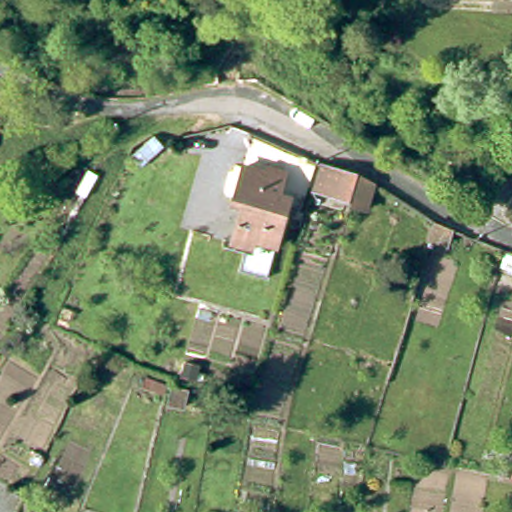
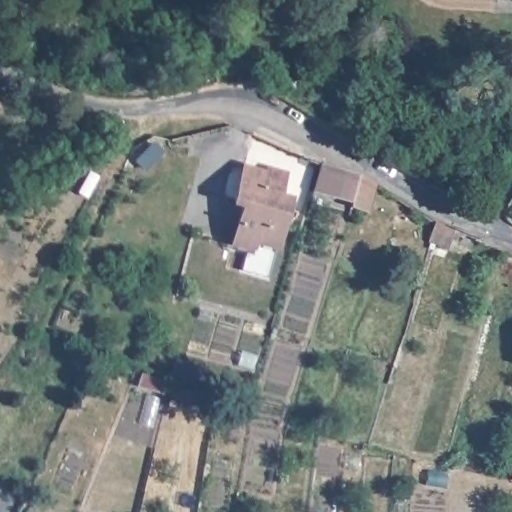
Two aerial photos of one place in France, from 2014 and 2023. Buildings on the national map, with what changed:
unchanged [(368,208),(352,203),(353,200),(312,187),(320,164),(328,165),(345,169),(361,175),(375,183),(368,208)]
unchanged [(282,246),(274,278),(247,270),(252,253),(259,255),(260,249),(239,243),(249,206),(245,206),(242,204),(240,200),(250,166),(272,173),(274,167),(292,172),(290,178),(285,195),(296,198),(294,208),(282,247),(282,246)]
unchanged [(453,229),(449,246),(430,239),(437,221),(453,229)]
unchanged [(191,363),(190,366),(198,368),(195,380),(175,376),(177,360),(191,363)]
unchanged [(165,384),(163,391),(144,384),(146,377),(165,384)]
unchanged [(252,392),(250,404),(241,402),(242,391),(252,392)]
unchanged [(25,497),(17,511),(17,512),(0,512),(0,483),(25,497)]

